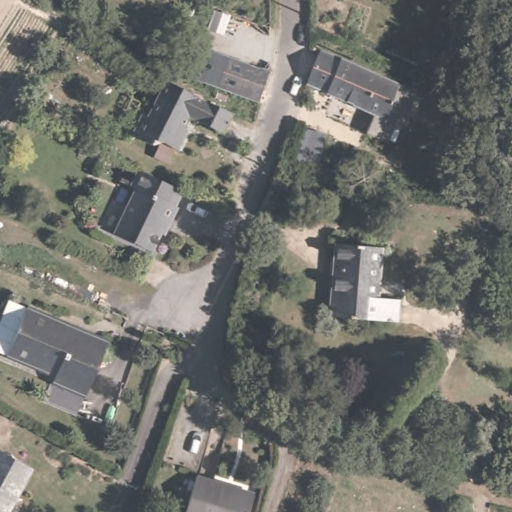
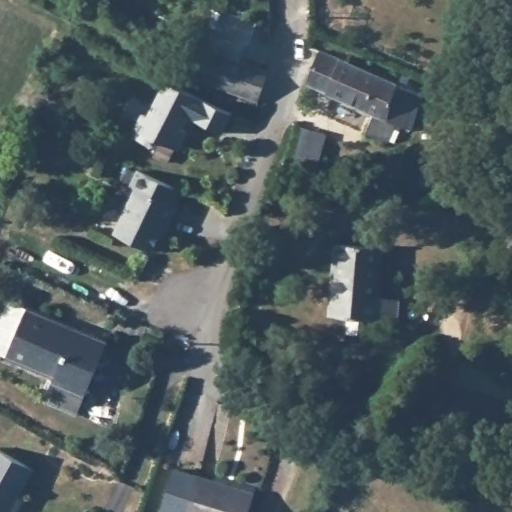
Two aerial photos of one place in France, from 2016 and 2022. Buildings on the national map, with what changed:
unchanged [(319,44),(377,69),(374,77),(362,105),(307,81),(305,80),(319,44)]
unchanged [(229,57),(265,70),(257,102),(217,88),(229,57)]
unchanged [(374,77),(377,69),(416,86),(406,124),(401,121),(394,137),(389,134),(387,138),(366,128),(372,110),(362,105),(374,77)]
unchanged [(224,129),(208,121),(198,116),(192,112),(185,125),(189,127),(180,145),(164,137),(154,140),(134,130),(145,109),(150,112),(169,77),(174,79),(215,101),(234,110),(224,129)]
unchanged [(291,166),(304,126),(329,134),(318,174),(291,166)]
unchanged [(178,202),(179,202),(173,220),(169,218),(155,247),(116,229),(138,184),(133,181),(140,165),(184,186),(178,202)]
unchanged [(381,247),(377,297),(398,299),(396,320),(339,316),(328,315),(332,275),(332,263),(334,244),(381,247)]
unchanged [(54,376),(6,356),(26,308),(59,322),(74,328),(107,342),(84,396),(61,386),(51,382),(54,376)]
unchanged [(8,512),(0,512),(0,451),(32,469),(8,512)]
unchanged [(253,493),(247,512),(184,512),(197,475),(253,493)]

